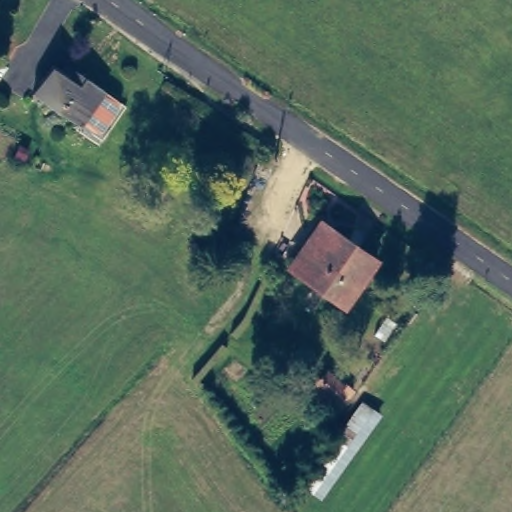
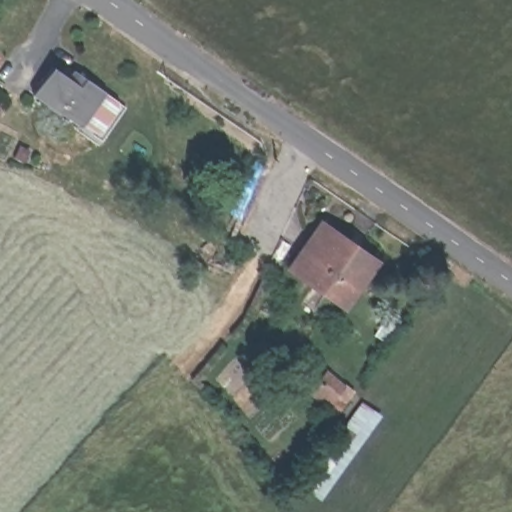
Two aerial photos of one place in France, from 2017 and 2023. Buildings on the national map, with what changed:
unchanged [(50,68),(53,65),(81,81),(86,74),(110,90),(84,130),(18,89),(34,60),(50,68)]
unchanged [(328,222),(381,259),(348,301),(297,265),(328,222)]
unchanged [(301,402),(318,415),(305,432),(288,420),(301,402)]

